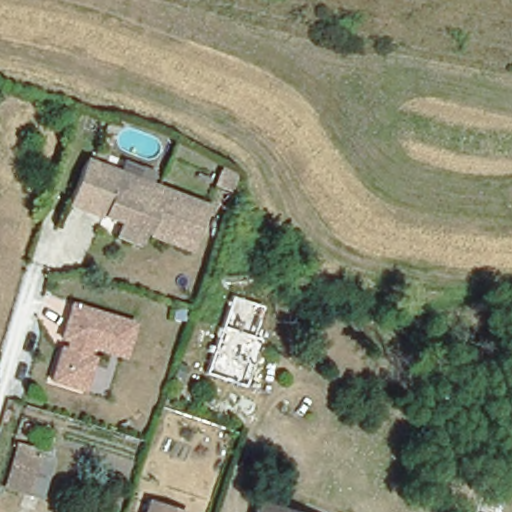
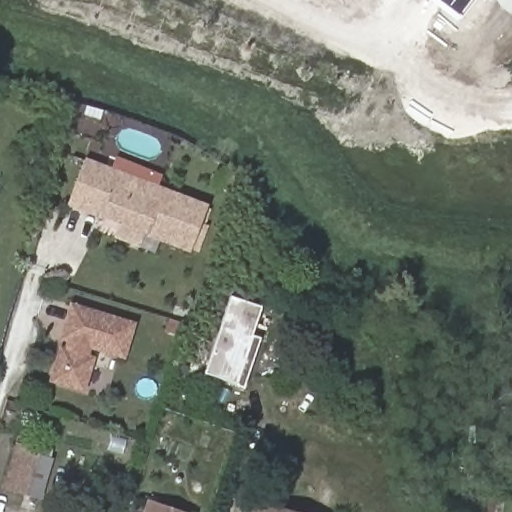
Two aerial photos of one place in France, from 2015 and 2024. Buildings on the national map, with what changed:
new [(430,0),(473,0),(457,21),(430,0)]
unchanged [(118,230),(121,222),(84,207),(71,202),(87,159),(97,164),(209,209),(192,251),(147,232),(144,241),(118,230)]
unchanged [(252,337),(262,340),(244,387),(208,376),(232,296),(263,307),(252,337)]
unchanged [(127,360),(91,350),(90,356),(99,359),(88,392),(48,382),(70,302),(137,323),(127,360)]
unchanged [(28,447),(28,452),(50,458),(39,496),(5,486),(18,444),(28,447)]
unchanged [(174,512),(141,512),(145,502),(174,512)]
unchanged [(259,502),(288,512),(257,512),(259,502)]

